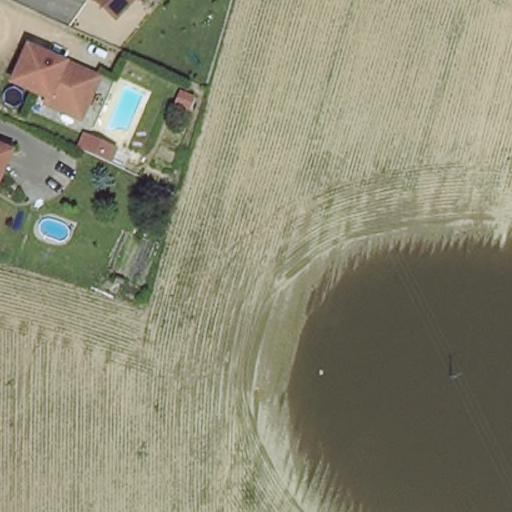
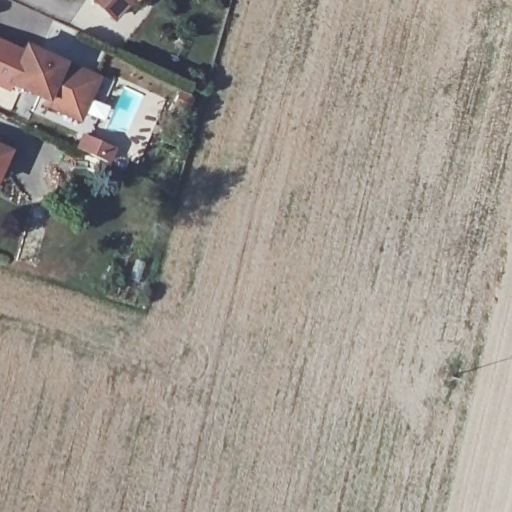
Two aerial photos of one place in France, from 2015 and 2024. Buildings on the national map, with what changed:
unchanged [(94,0),(131,0),(114,19),(94,0)]
new [(0,87),(0,38),(21,47),(7,79),(13,81),(9,91),(0,87)]
unchanged [(42,101),(44,95),(7,79),(22,44),(94,74),(79,110),(76,115),(42,101)]

